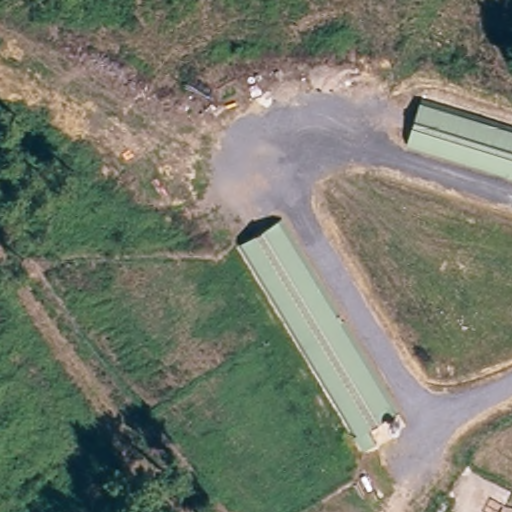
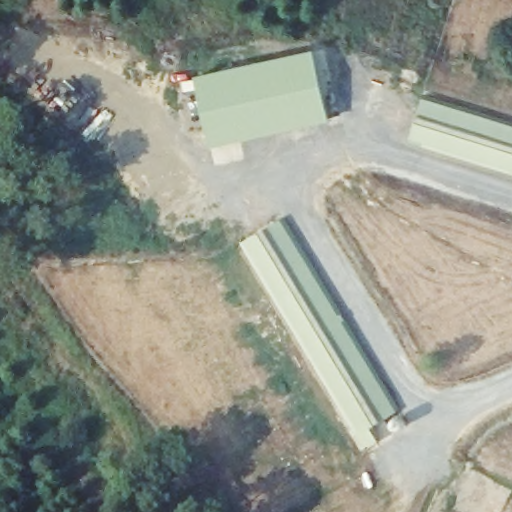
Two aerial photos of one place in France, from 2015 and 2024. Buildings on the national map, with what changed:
new [(314,48),(329,120),(207,147),(192,75),(314,48)]
unchanged [(414,106),(512,124),(512,175),(404,155),(414,106)]
unchanged [(278,221),(404,404),(379,421),(389,435),(374,445),(236,247),(278,221)]

